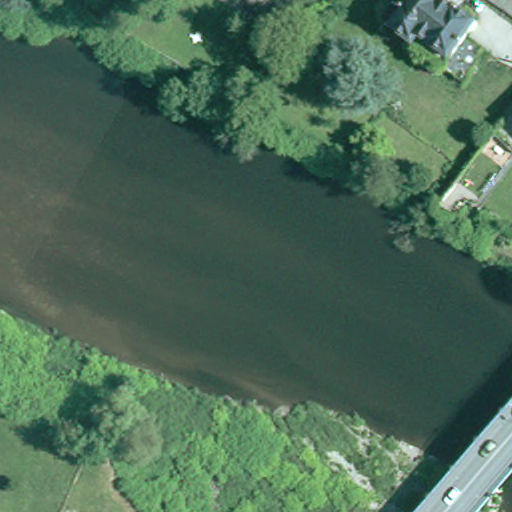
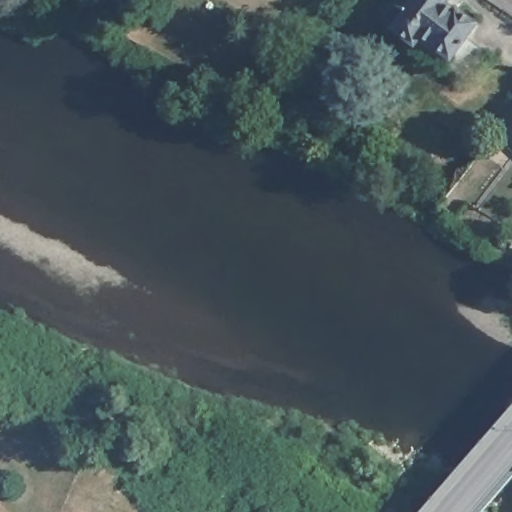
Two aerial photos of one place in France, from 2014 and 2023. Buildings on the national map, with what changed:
unchanged [(444,3),(454,9),(456,6),(479,23),(469,38),(489,52),(468,82),(384,23),(399,0),(447,0),(444,3)]

